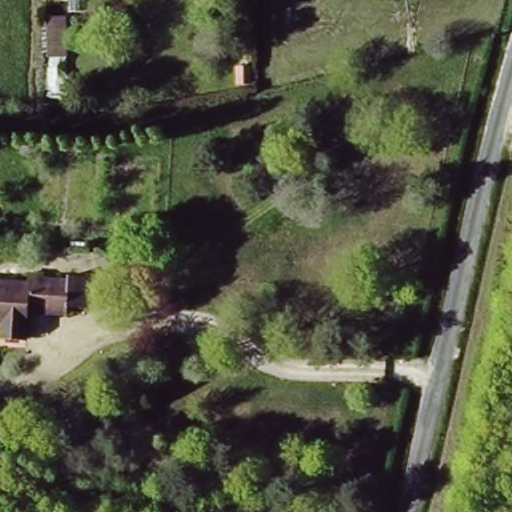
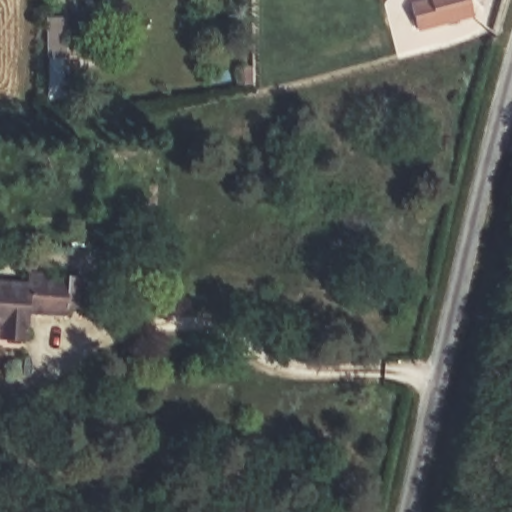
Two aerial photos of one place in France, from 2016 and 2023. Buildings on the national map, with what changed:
new [(410,2),(418,0),(470,0),(475,17),(418,31),(410,2)]
unchanged [(48,16),(66,15),(67,99),(49,97),(48,16)]
unchanged [(62,293),(64,274),(95,277),(94,305),(69,304),(65,318),(29,313),(25,345),(0,345),(0,285),(62,293)]

